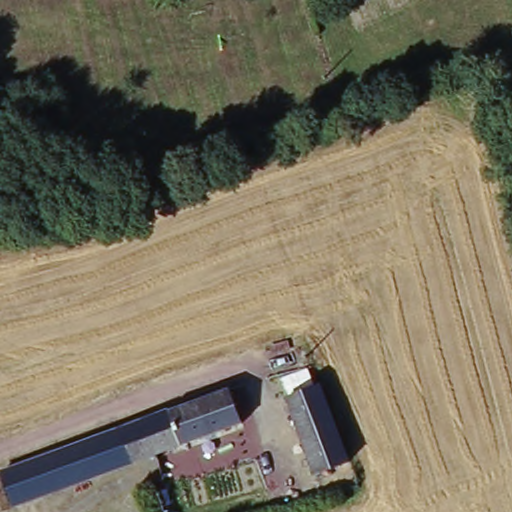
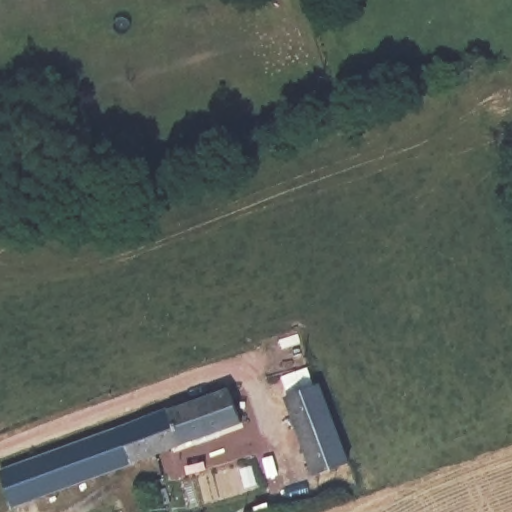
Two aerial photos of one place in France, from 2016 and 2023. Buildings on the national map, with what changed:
unchanged [(353,465),(325,476),(314,480),(283,403),(322,387),(353,465)]
unchanged [(229,391),(242,426),(12,505),(1,466),(229,391)]

